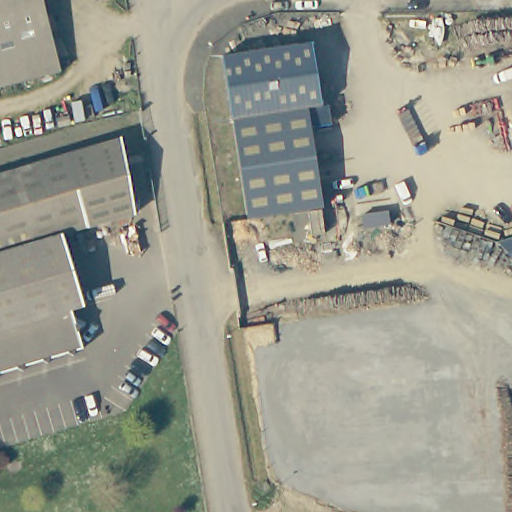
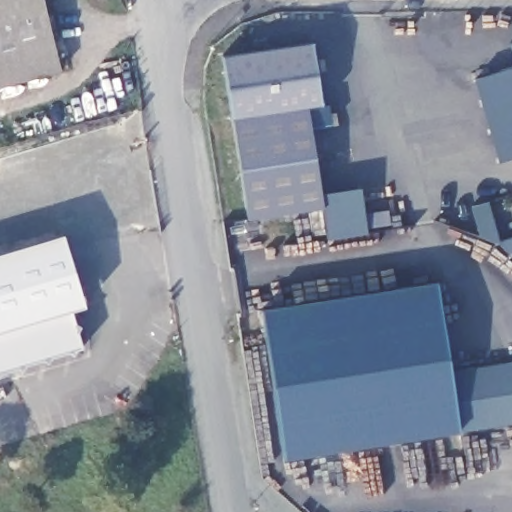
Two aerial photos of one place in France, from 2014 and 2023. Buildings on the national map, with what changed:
unchanged [(60,73),(0,88),(0,0),(41,0),(60,73)]
new [(509,43),(512,42),(512,54),(509,43)]
unchanged [(317,108),(303,111),(317,210),(243,223),(218,61),(307,47),(317,108)]
new [(498,161),(472,80),(512,68),(512,156),(498,161)]
unchanged [(61,231),(79,302),(68,305),(70,318),(77,317),(79,322),(75,328),(76,343),(69,348),(68,358),(59,350),(44,354),(43,364),(36,357),(19,362),(15,372),(9,365),(0,367),(0,172),(121,137),(129,212),(61,231)]
new [(359,188),(368,233),(328,239),(321,208),(317,210),(315,194),(359,188)]
unchanged [(496,251),(512,246),(512,267),(496,251)]
new [(458,432),(281,457),(260,308),(432,282),(446,373),(512,362),(512,424),(458,432)]

